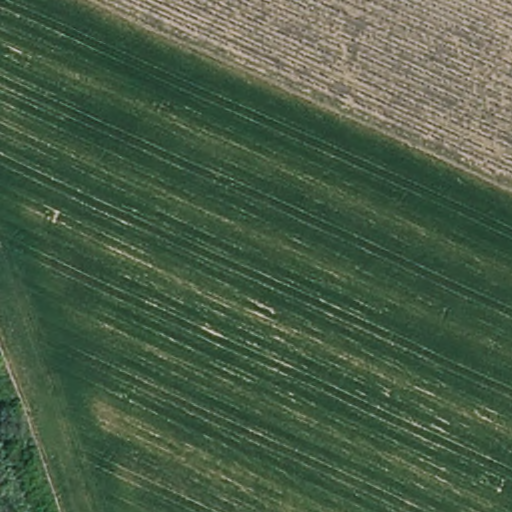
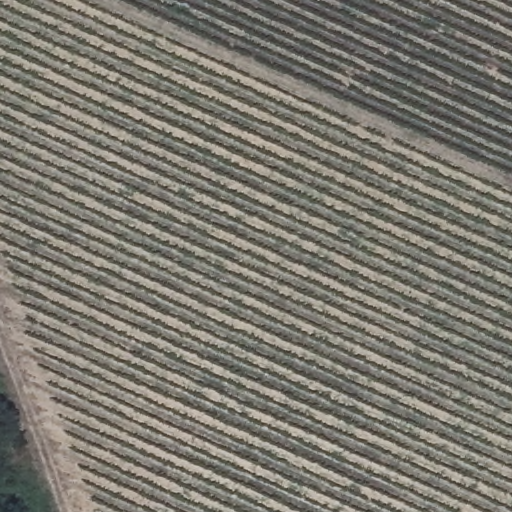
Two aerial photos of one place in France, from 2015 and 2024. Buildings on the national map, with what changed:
[]

